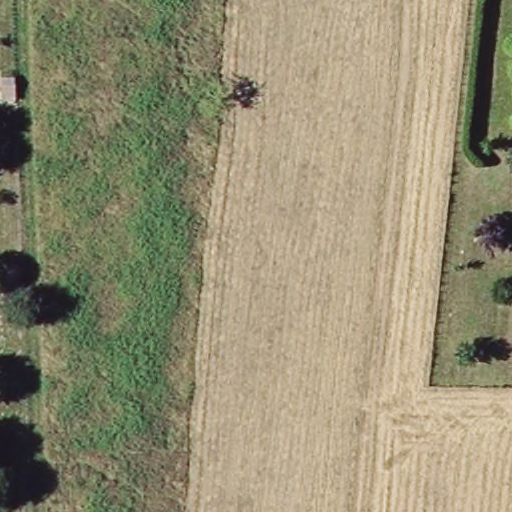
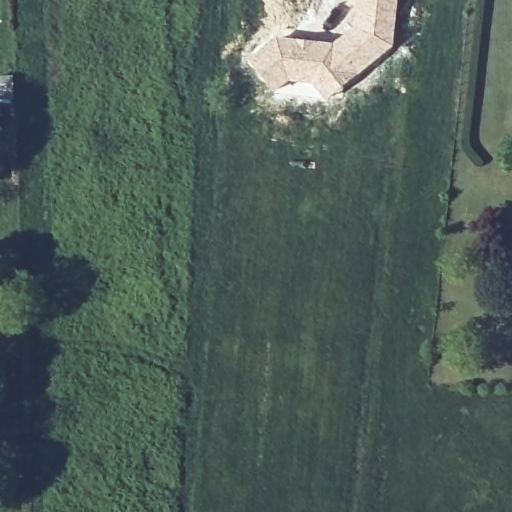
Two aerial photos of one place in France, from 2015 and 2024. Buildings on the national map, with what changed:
new [(276,36),(276,37),(331,42),(346,32),(351,25),(355,0),(398,0),(393,47),(327,101),(309,83),(290,82),(275,93),(248,60),(276,36)]

